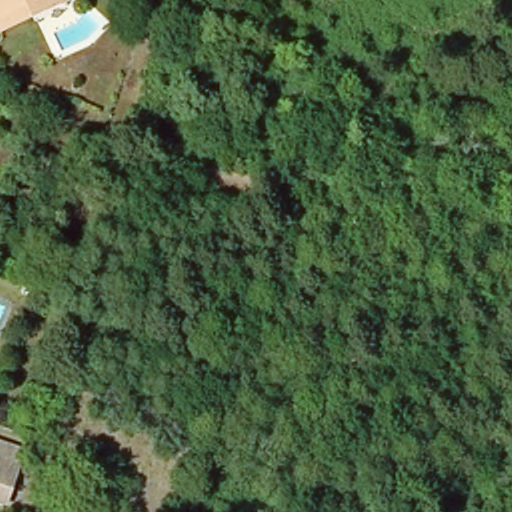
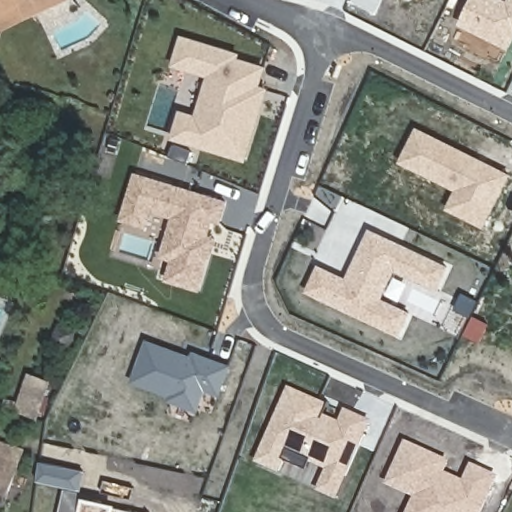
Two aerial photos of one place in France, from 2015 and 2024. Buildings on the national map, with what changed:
unchanged [(60,0),(39,10),(0,28),(0,0),(60,0)]
new [(472,0),(505,0),(507,1),(508,0),(512,0),(512,43),(509,50),(459,25),(472,0)]
new [(172,67),(181,36),(240,53),(239,57),(268,66),(261,87),(269,88),(246,162),(172,140),(180,109),(195,114),(206,76),(172,67)]
new [(512,177),(485,229),(447,210),(456,190),(400,162),(417,127),(512,174),(512,177)]
new [(171,218),(152,212),(148,229),(120,221),(134,173),(228,200),(222,223),(213,221),(209,236),(217,239),(201,292),(165,281),(170,262),(160,258),(171,218)]
new [(449,266),(438,291),(396,271),(384,300),(411,313),(400,335),(305,292),(319,264),(346,276),(370,229),(449,266)]
new [(191,356),(193,352),(231,365),(220,397),(205,391),(199,413),(169,402),(171,397),(131,381),(145,339),(191,356)]
new [(28,372),(54,380),(41,419),(15,410),(28,372)]
new [(322,414),(339,421),(345,409),(371,422),(337,500),(317,491),(326,469),(308,462),(305,470),(284,461),(279,474),(255,463),(288,387),(326,403),(322,414)]
new [(406,440),(450,461),(445,472),(463,479),(470,463),(499,475),(484,512),(407,512),(414,496),(386,485),(406,440)]
unchanged [(27,453),(8,508),(0,505),(0,444),(27,453)]

